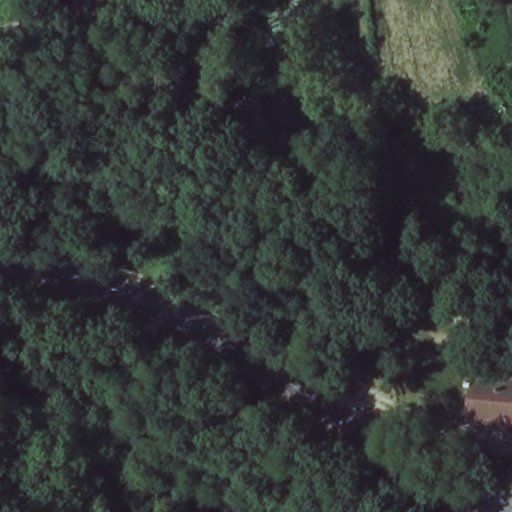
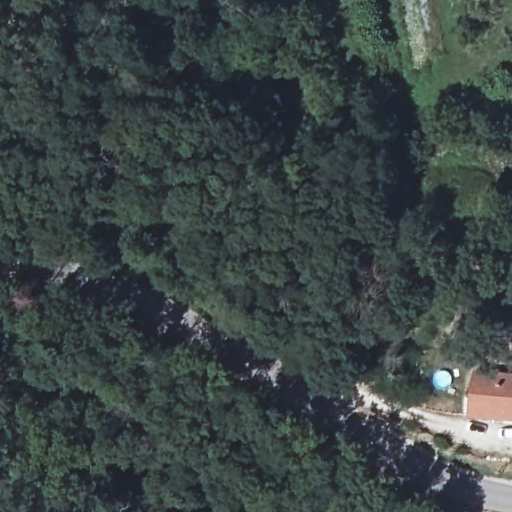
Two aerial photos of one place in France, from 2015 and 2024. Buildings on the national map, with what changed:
unchanged [(474,413),(480,377),(512,383),(512,421),(474,413)]

